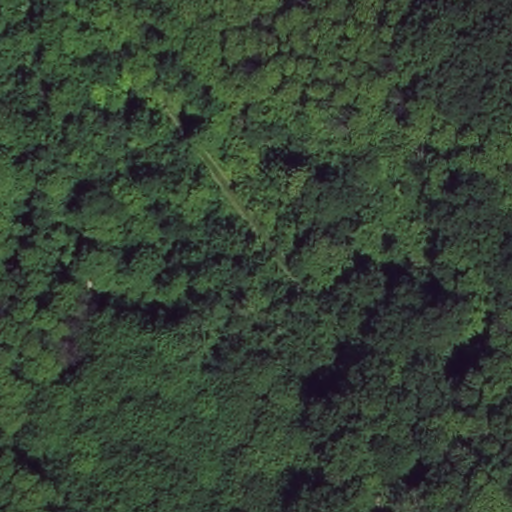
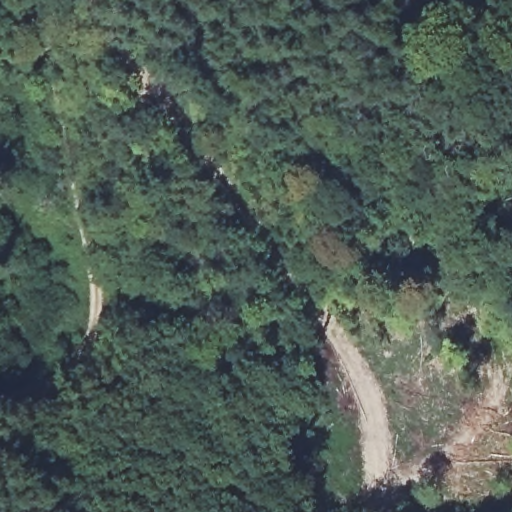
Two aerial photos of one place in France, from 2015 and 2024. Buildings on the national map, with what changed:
unchanged [(486,328),(512,328),(512,365),(484,365),(486,328)]

